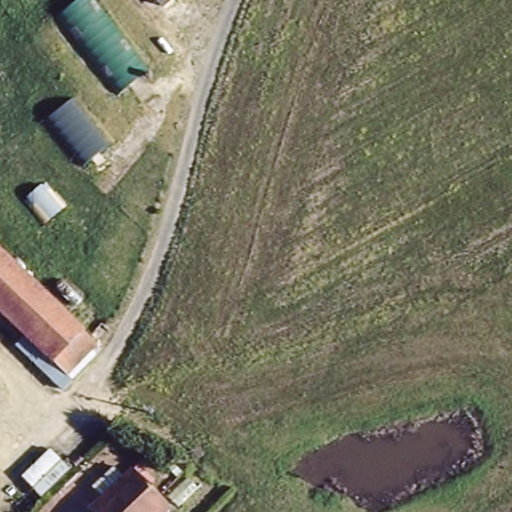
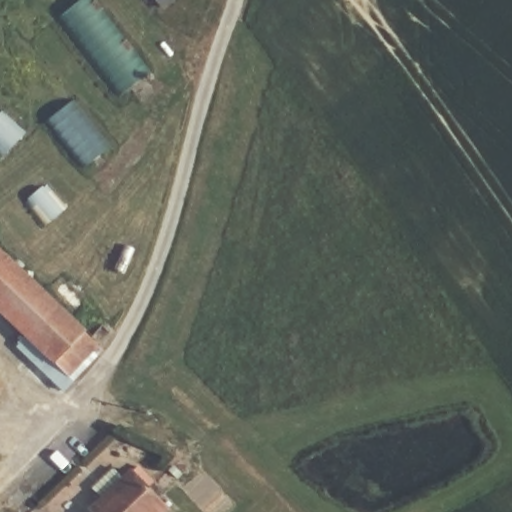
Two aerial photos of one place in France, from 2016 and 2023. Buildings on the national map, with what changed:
unchanged [(54,16),(79,0),(88,0),(148,73),(118,96),(54,16)]
unchanged [(168,5),(164,0),(173,0),(168,5)]
unchanged [(65,103),(101,150),(78,168),(41,123),(65,103)]
unchanged [(95,344),(63,382),(0,321),(0,253),(95,344)]
unchanged [(43,453),(66,473),(38,505),(13,482),(43,453)]
unchanged [(168,512),(167,512),(99,512),(136,476),(168,512)]

